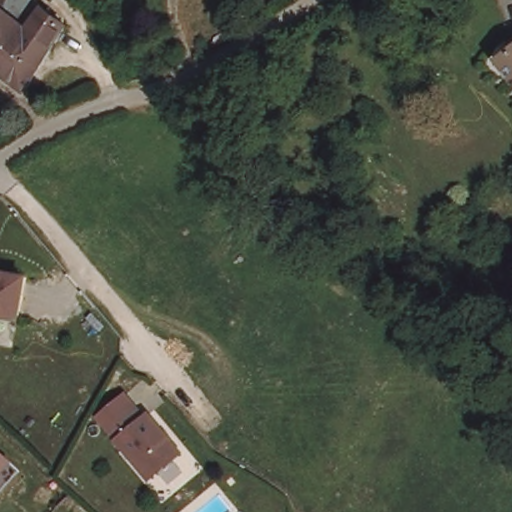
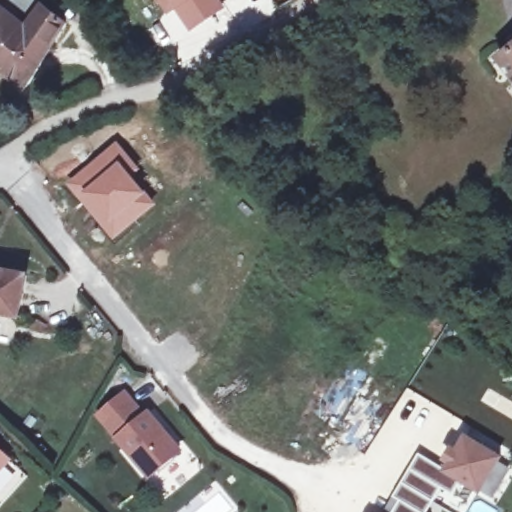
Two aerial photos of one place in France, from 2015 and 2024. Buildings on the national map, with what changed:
unchanged [(67,23),(25,89),(0,70),(0,0),(37,0),(67,23)]
new [(226,7),(189,33),(175,12),(169,16),(158,0),(221,0),(226,7)]
unchanged [(512,67),(505,57),(512,52),(512,67)]
new [(117,139),(142,167),(133,175),(157,202),(112,240),(65,182),(117,139)]
unchanged [(22,270),(14,311),(0,309),(0,267),(22,270)]
unchanged [(135,403),(145,417),(150,413),(181,451),(150,476),(108,425),(135,403)]
new [(420,454),(446,468),(448,463),(443,460),(452,445),(457,448),(467,433),(468,430),(487,441),(485,444),(503,456),(500,461),(512,469),(493,500),(482,493),(462,482),(455,494),(442,487),(428,512),(385,512),(395,497),(420,454)]
unchanged [(0,476),(0,448),(13,460),(0,476)]

